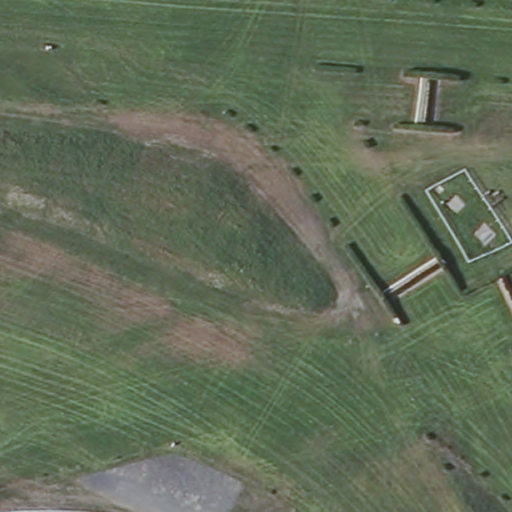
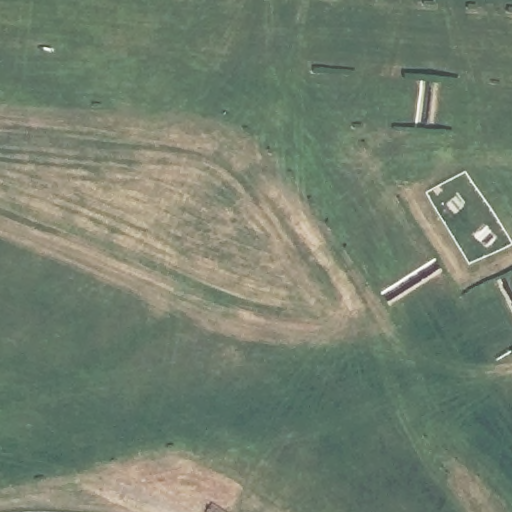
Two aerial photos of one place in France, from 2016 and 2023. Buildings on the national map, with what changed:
[]

